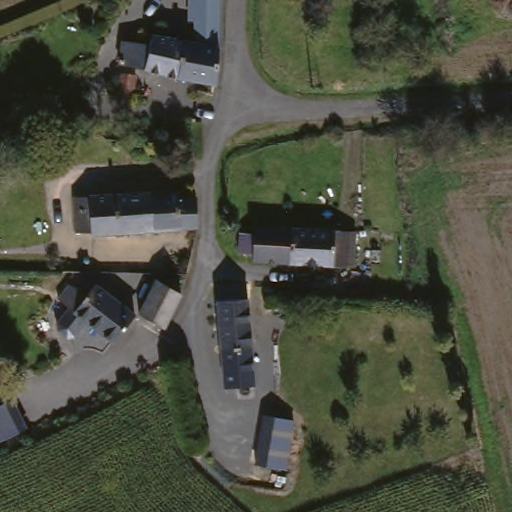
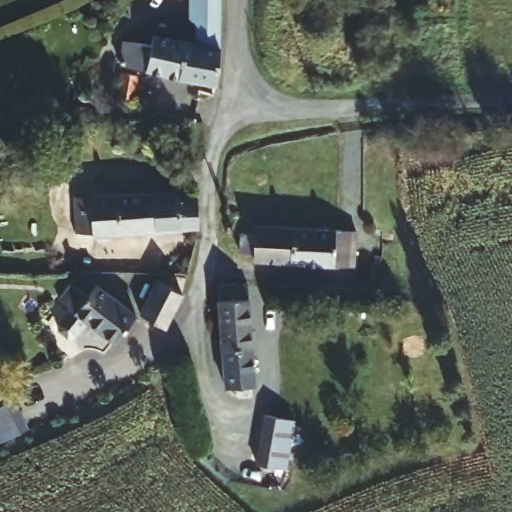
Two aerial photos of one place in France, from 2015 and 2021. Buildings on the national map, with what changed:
unchanged [(160,35),(200,41),(202,25),(195,24),(197,0),(232,0),(229,82),(135,62),(137,44),(159,47),(160,35)]
unchanged [(150,69),(147,97),(132,95),(135,66),(150,69)]
unchanged [(185,184),(186,191),(203,190),(205,220),(99,225),(99,221),(82,222),(80,189),(185,184)]
unchanged [(245,250),(247,228),(263,229),(263,223),(364,230),(362,263),(340,261),(261,256),(261,251),(245,250)]
unchanged [(169,277),(194,289),(176,324),(149,310),(169,277)]
unchanged [(98,318),(86,334),(74,334),(70,331),(69,325),(72,318),(80,306),(66,295),(79,278),(96,291),(105,279),(147,311),(126,339),(98,318)]
unchanged [(228,311),(226,282),(255,280),(262,384),(233,386),(228,311)]
unchanged [(7,435),(0,438),(0,404),(18,394),(21,400),(32,422),(7,435)]
unchanged [(291,468),(260,465),(266,417),(296,421),(291,468)]

